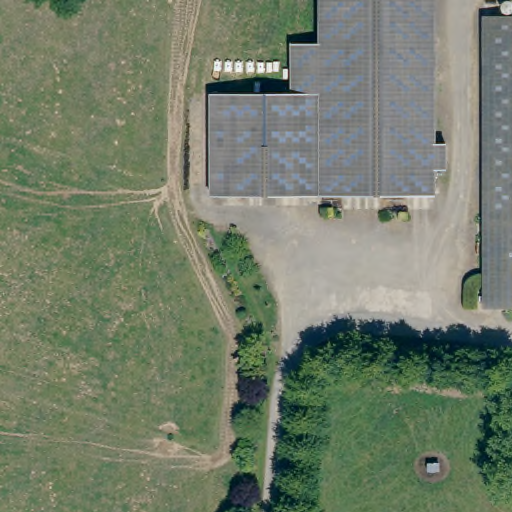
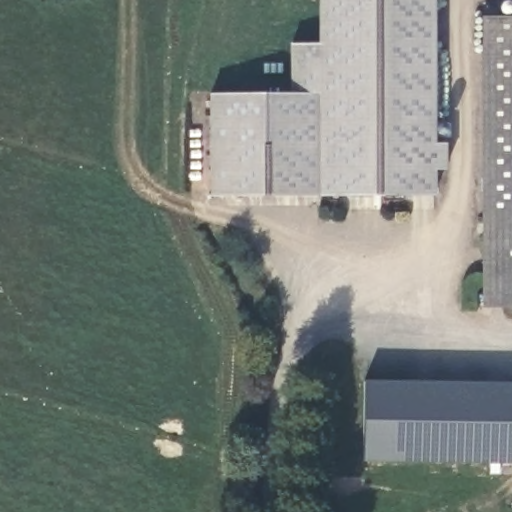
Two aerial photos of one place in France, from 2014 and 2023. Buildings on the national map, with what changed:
unchanged [(441,143),(452,143),(453,170),(442,170),(443,195),(282,199),(258,200),(220,200),(217,100),(235,99),(251,99),(297,97),(296,47),(324,46),(323,0),(438,0),(441,143)]
unchanged [(512,19),(512,211),(478,210),(473,18),(512,19)]
unchanged [(512,305),(480,305),(478,210),(512,211),(512,305)]
new [(512,381),(512,463),(362,462),(362,381),(512,381)]

